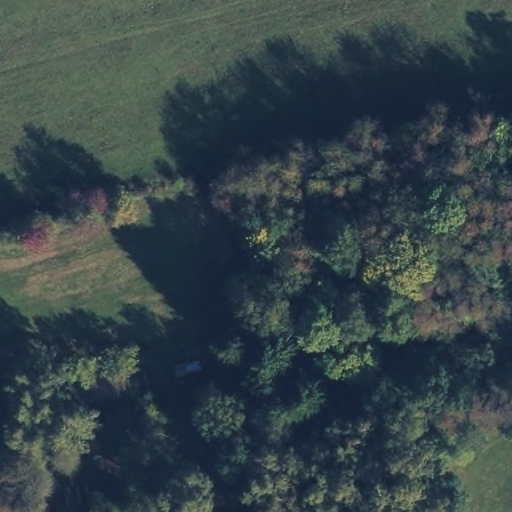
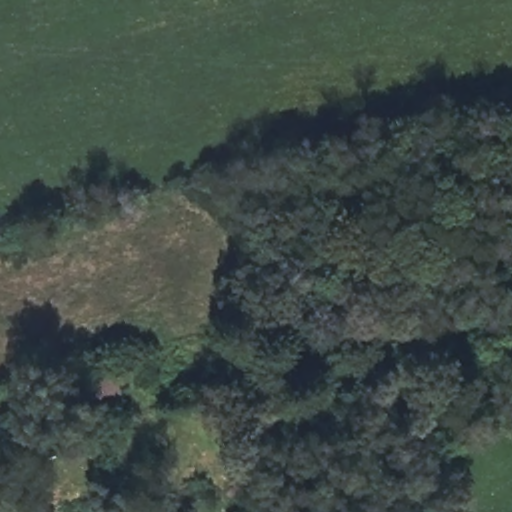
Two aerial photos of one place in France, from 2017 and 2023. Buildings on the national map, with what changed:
unchanged [(83,400),(79,381),(113,372),(114,378),(120,377),(123,389),(83,400)]

